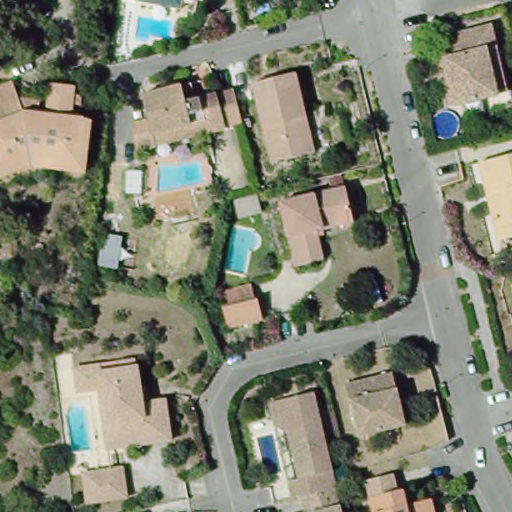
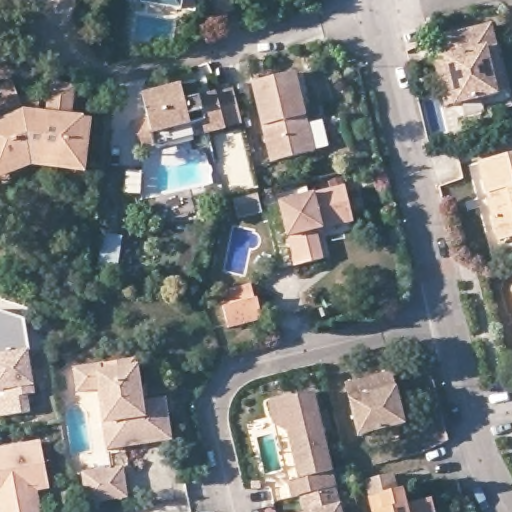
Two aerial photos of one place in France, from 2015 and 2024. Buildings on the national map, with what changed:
unchanged [(141,3),(142,0),(197,0),(194,13),(141,3)]
unchanged [(432,61),(444,59),(439,38),(491,24),(497,46),(508,91),(498,94),(455,105),(443,108),(432,61)]
unchanged [(270,163),(251,84),(295,73),(314,152),(270,163)]
unchanged [(30,160),(0,171),(0,87),(13,82),(20,98),(40,101),(38,113),(47,115),(52,84),(77,87),(73,117),(85,119),(77,166),(30,160)]
unchanged [(143,156),(136,127),(152,123),(147,99),(187,89),(191,105),(237,93),(247,129),(229,134),(229,135),(213,139),(161,152),(143,156)]
unchanged [(93,120),(85,176),(31,168),(0,180),(0,171),(30,160),(77,166),(85,119),(93,120)]
unchanged [(478,163),(512,154),(512,237),(498,240),(478,163)]
unchanged [(323,260),(293,266),(278,203),(344,187),(350,216),(352,223),(323,230),(317,231),(323,260)]
new [(100,236),(119,238),(117,268),(98,267),(100,236)]
unchanged [(258,325),(226,332),(219,296),(251,288),(258,325)]
new [(24,320),(36,395),(27,396),(30,414),(0,417),(0,399),(7,398),(5,391),(0,391),(0,312),(24,320)]
unchanged [(104,423),(100,390),(77,392),(73,368),(102,365),(102,371),(117,371),(117,364),(135,360),(138,385),(144,384),(147,399),(140,400),(166,399),(171,441),(133,446),(108,450),(104,423)]
unchanged [(363,435),(351,383),(396,372),(409,425),(363,435)]
unchanged [(292,496),(289,480),(299,477),(288,431),(275,423),(270,403),(314,392),(336,486),(298,495),(292,496)]
new [(24,512),(1,512),(0,509),(0,448),(38,441),(46,483),(34,485),(38,510),(24,512)]
unchanged [(88,504),(83,474),(121,468),(125,498),(88,504)]
unchanged [(364,480),(393,473),(401,506),(430,499),(434,512),(372,512),(364,480)]
unchanged [(298,495),(336,486),(342,512),(302,512),(298,495)]

